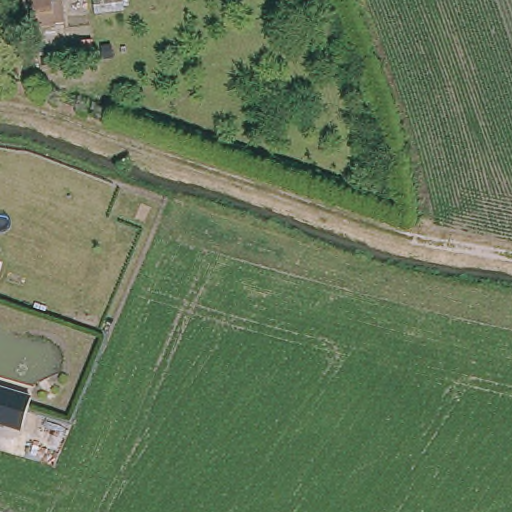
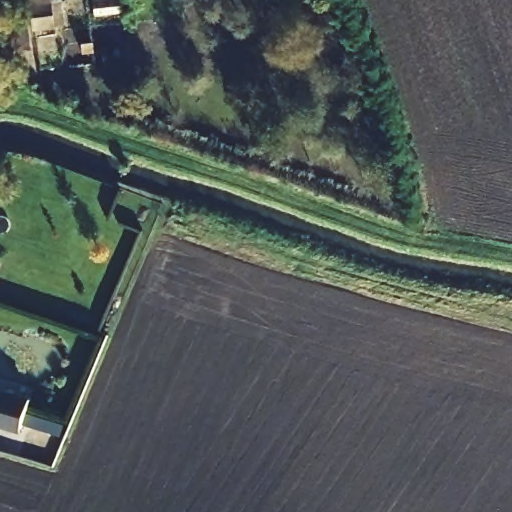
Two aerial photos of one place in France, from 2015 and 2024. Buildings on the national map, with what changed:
unchanged [(37,33),(32,0),(62,0),(66,29),(37,33)]
unchanged [(28,399),(19,433),(0,427),(0,389),(28,399)]

